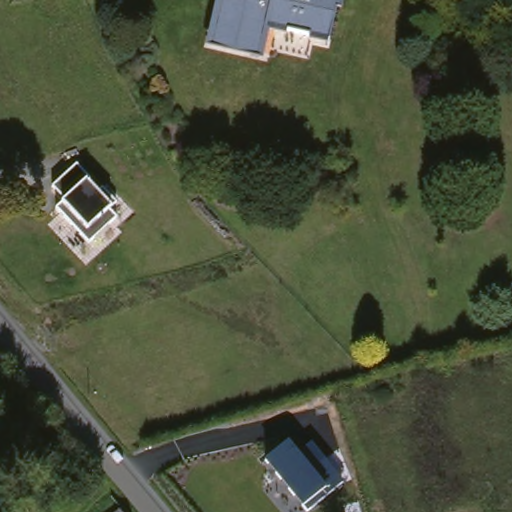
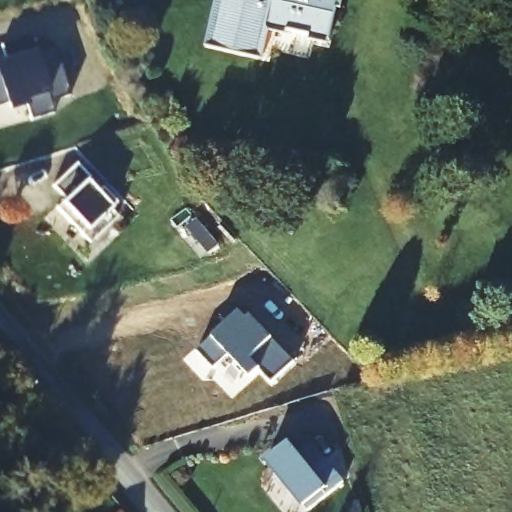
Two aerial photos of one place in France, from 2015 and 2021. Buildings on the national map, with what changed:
unchanged [(253,61),(206,50),(217,0),(336,0),(324,47),(259,31),(253,61)]
new [(6,62),(0,41),(0,39),(29,30),(34,45),(54,39),(68,90),(49,96),(52,108),(28,114),(22,93),(0,99),(0,64),(6,62)]
unchanged [(57,208),(63,201),(67,198),(54,185),(77,164),(89,177),(86,181),(99,193),(104,188),(117,203),(111,208),(109,209),(117,216),(89,241),(57,208)]
new [(224,317),(217,310),(229,298),(244,312),(248,308),(293,354),(270,377),(258,365),(249,374),(226,351),(212,365),(194,347),(224,317)]
unchanged [(304,505),(302,506),(266,462),(288,442),(299,454),(312,442),(343,481),(308,511),(304,505)]

